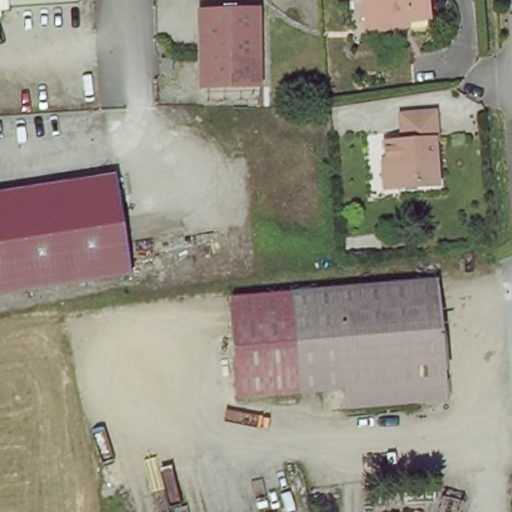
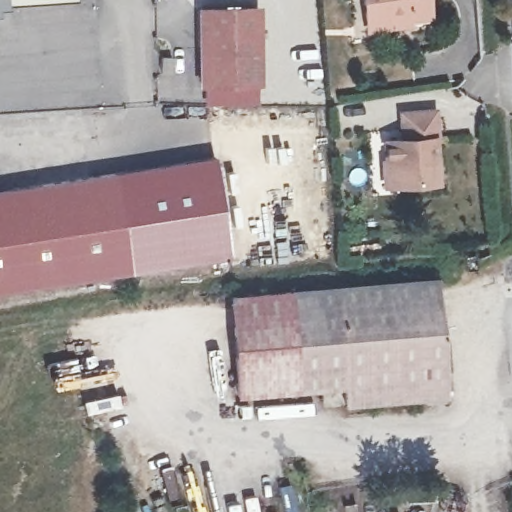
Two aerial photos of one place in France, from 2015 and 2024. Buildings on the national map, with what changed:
unchanged [(20,2),(9,3),(0,9),(0,0),(19,0),(20,2)]
unchanged [(79,10),(21,14),(20,2),(19,0),(78,0),(79,10)]
unchanged [(366,27),(364,16),(362,0),(425,0),(426,12),(411,15),(411,22),(366,27)]
unchanged [(201,85),(199,5),(261,2),(261,82),(201,85)]
new [(172,57),(172,72),(161,72),(161,57),(172,57)]
demolished [(261,107),(202,111),(201,85),(261,82),(261,107)]
unchanged [(437,105),(440,135),(435,136),(440,181),(400,186),(399,166),(395,167),(392,133),(405,131),(403,110),(437,105)]
new [(114,170),(213,157),(228,256),(132,268),(114,170)]
unchanged [(114,170),(132,268),(0,292),(0,190),(114,170)]
unchanged [(440,273),(448,400),(347,407),(345,382),(238,393),(231,292),(440,273)]

